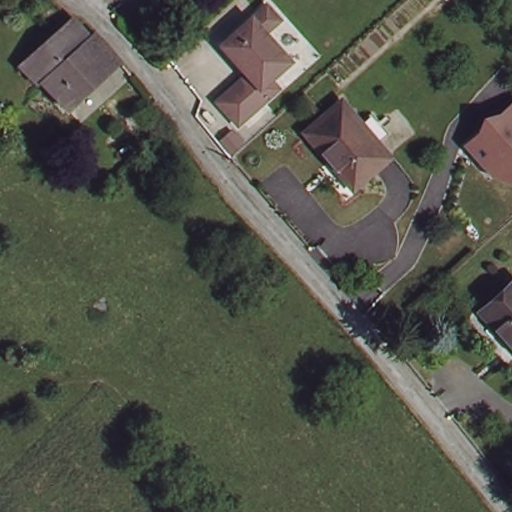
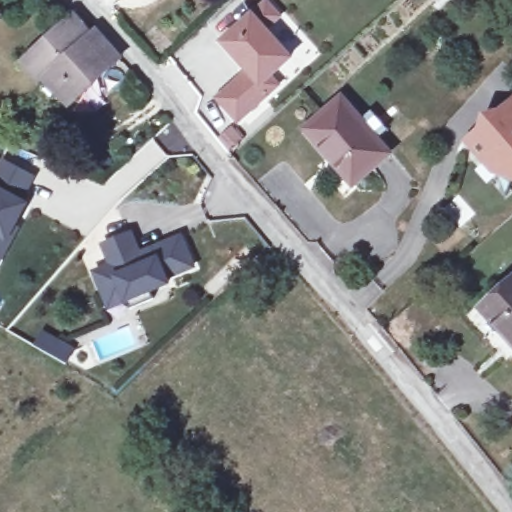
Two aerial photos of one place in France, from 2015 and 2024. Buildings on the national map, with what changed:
unchanged [(219,43),(257,10),(263,4),(278,19),(272,25),(265,31),(288,60),(268,77),(275,86),(234,121),(215,97),(237,79),(247,72),(219,43)]
unchanged [(85,41),(95,40),(117,66),(69,113),(25,65),(68,24),(85,41)]
unchanged [(353,188),(307,133),(340,105),(387,159),(367,176),(353,188)]
unchanged [(468,150),(512,112),(512,173),(509,169),(494,181),(487,172),(468,150)]
new [(5,163),(33,178),(20,202),(27,205),(8,240),(0,235),(0,236),(0,173),(5,163)]
new [(107,300),(96,272),(113,265),(104,245),(132,234),(140,254),(182,237),(194,266),(167,278),(169,283),(151,291),(155,299),(132,309),(128,300),(127,300),(110,307),(107,300)]
unchanged [(481,310),(512,283),(512,284),(512,348),(495,326),(481,310)]

